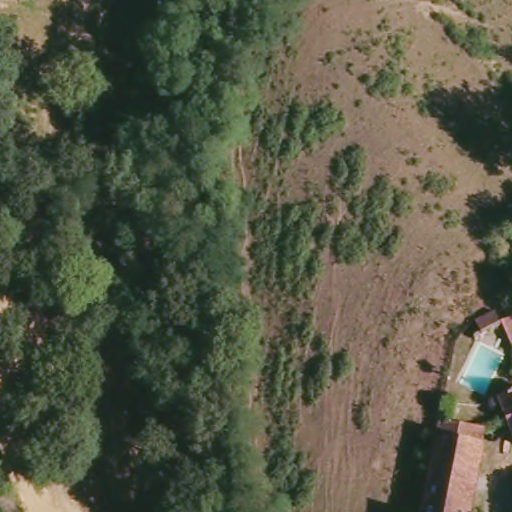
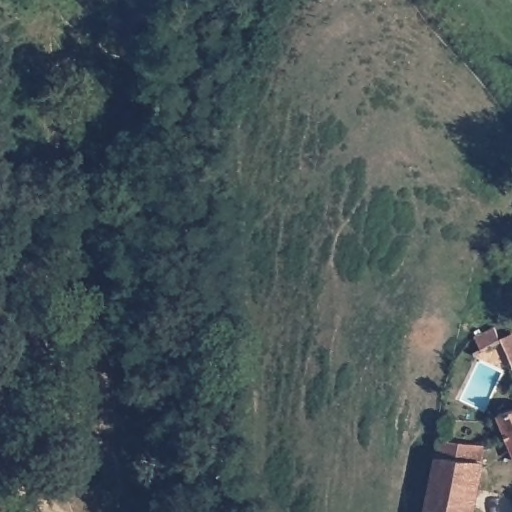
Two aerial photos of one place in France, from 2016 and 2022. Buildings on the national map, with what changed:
unchanged [(512,441),(500,424),(512,416),(512,441)]
unchanged [(466,438),(487,443),(485,459),(476,512),(429,512),(442,433),(466,438)]

